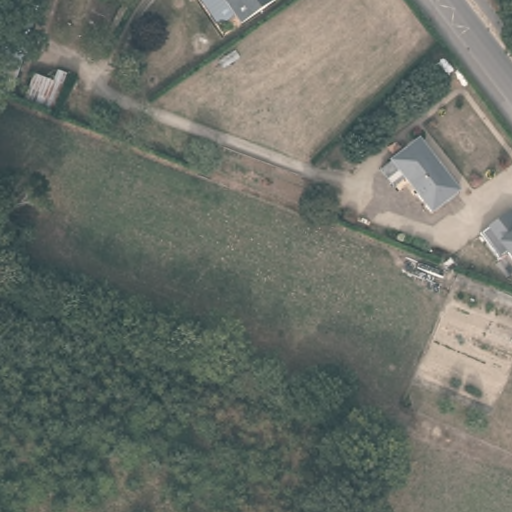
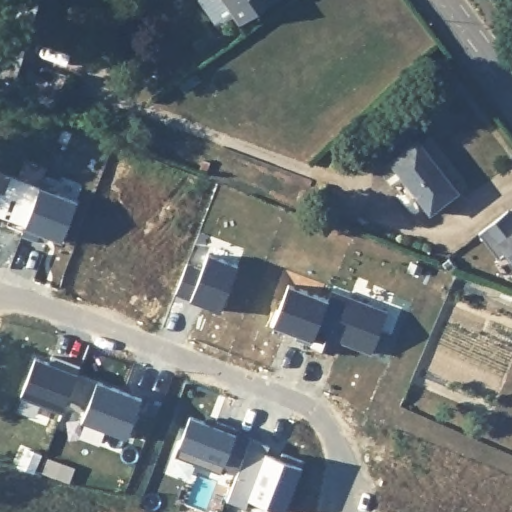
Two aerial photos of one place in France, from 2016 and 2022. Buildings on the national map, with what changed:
unchanged [(8,0),(42,0),(16,68),(0,65),(0,24),(8,0)]
unchanged [(218,0),(276,0),(238,29),(218,0)]
unchanged [(387,164),(416,141),(454,190),(426,214),(387,164)]
new [(43,180),(58,186),(56,193),(77,201),(62,241),(40,233),(37,241),(22,235),(43,180)]
unchanged [(498,260),(480,232),(488,226),(511,210),(512,211),(512,259),(508,254),(498,260)]
new [(187,263),(202,270),(208,254),(238,265),(221,311),(176,293),(187,263)]
new [(289,285),(329,300),(311,345),(296,340),(298,335),(273,325),(289,285)]
new [(329,300),(332,291),(388,312),(372,353),(339,340),(334,354),(311,345),(329,300)]
new [(36,357),(50,363),(52,356),(80,366),(78,373),(68,399),(64,411),(21,395),(36,357)]
new [(78,373),(143,398),(127,437),(83,420),(88,406),(68,399),(78,373)]
new [(191,416),(205,422),(207,417),(238,430),(237,433),(251,438),(237,474),(223,468),(221,474),(175,456),(191,416)]
new [(237,474),(251,438),(270,445),(265,457),(279,463),(283,453),(304,461),(285,511),(250,498),(246,508),(227,500),(237,474)]

